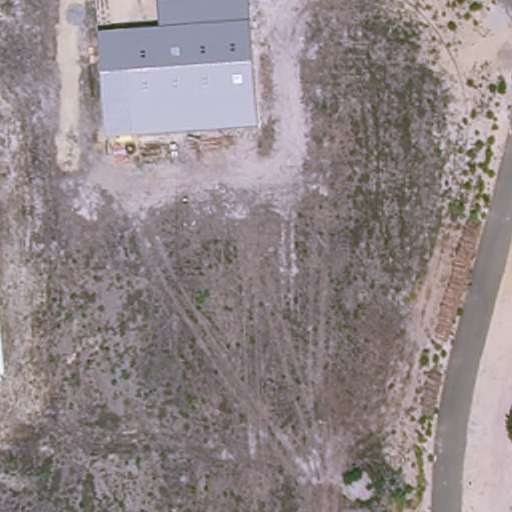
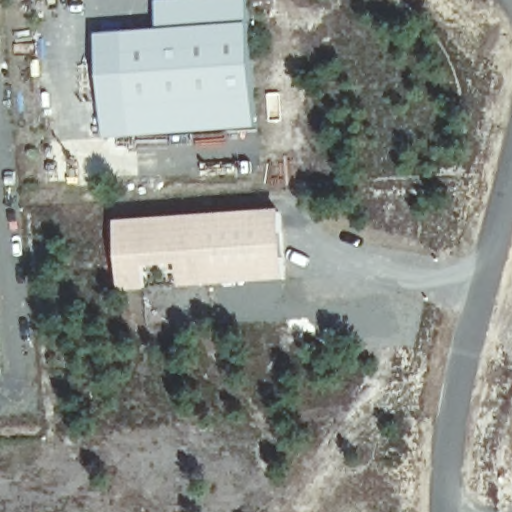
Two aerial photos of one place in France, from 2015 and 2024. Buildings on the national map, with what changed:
unchanged [(98,33),(160,28),(158,0),(249,0),(250,22),(257,130),(106,139),(98,33)]
new [(118,222),(282,210),(288,281),(181,288),(180,265),(146,267),(148,291),(122,293),(118,222)]
unchanged [(2,379),(0,379),(0,357),(2,379)]

